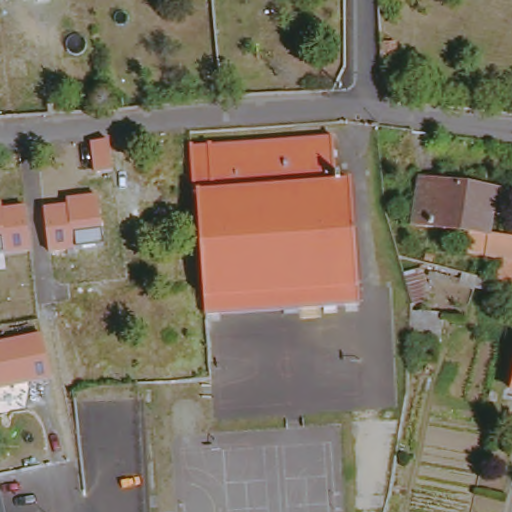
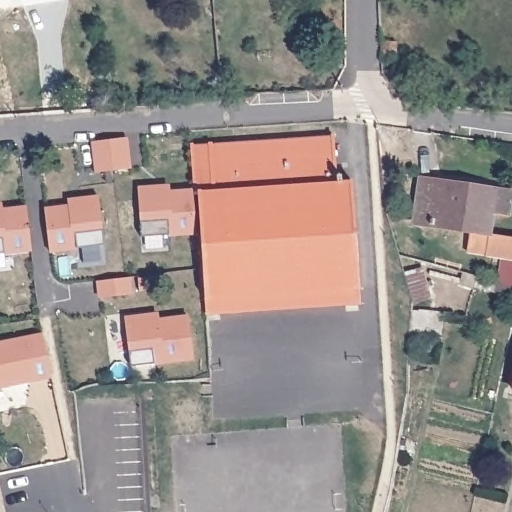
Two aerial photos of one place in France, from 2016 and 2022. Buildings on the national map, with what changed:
new [(95,172),(90,142),(129,137),(132,167),(95,172)]
unchanged [(195,148),(335,137),(337,171),(343,170),(345,179),(340,180),(341,187),(354,186),(363,286),(365,306),(209,317),(207,297),(195,148)]
unchanged [(501,282),(507,257),(470,249),(472,229),(417,221),(424,176),(512,190),(512,203),(510,213),(493,210),(490,233),(512,236),(512,285),(501,282)]
new [(139,187),(170,185),(170,190),(199,189),(202,233),(142,236),(139,187)]
unchanged [(67,205),(66,200),(100,196),(105,246),(50,252),(45,208),(67,205)]
unchanged [(4,211),(25,208),(32,255),(4,259),(2,254),(0,254),(0,203),(3,203),(4,211)]
unchanged [(405,273),(424,267),(433,295),(414,301),(405,273)]
new [(195,360),(158,366),(157,362),(131,365),(125,316),(159,313),(160,318),(189,315),(195,360)]
unchanged [(50,378),(0,387),(0,341),(40,333),(50,378)]

